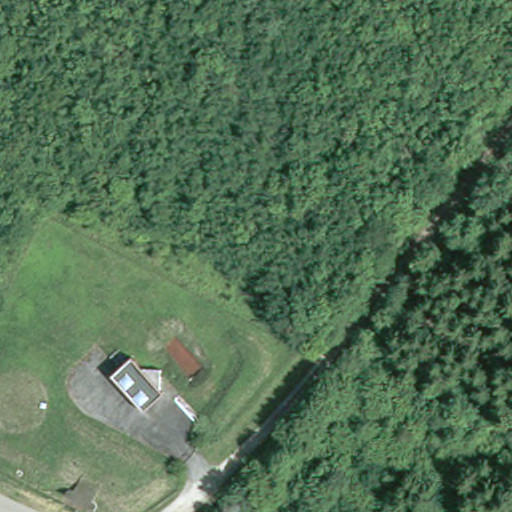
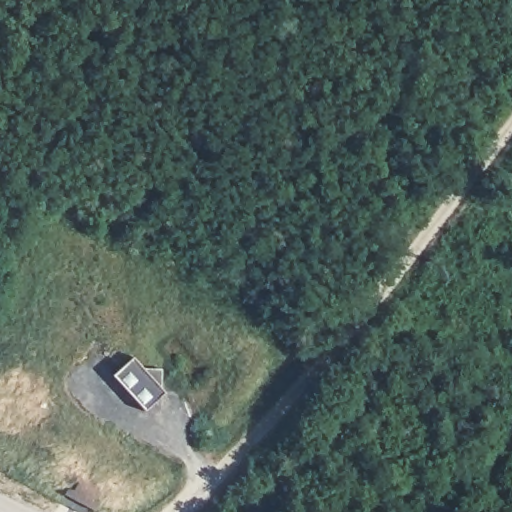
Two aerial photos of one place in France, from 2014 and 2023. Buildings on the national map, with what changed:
unchanged [(132,362),(151,375),(167,373),(169,393),(150,415),(112,378),(132,362)]

